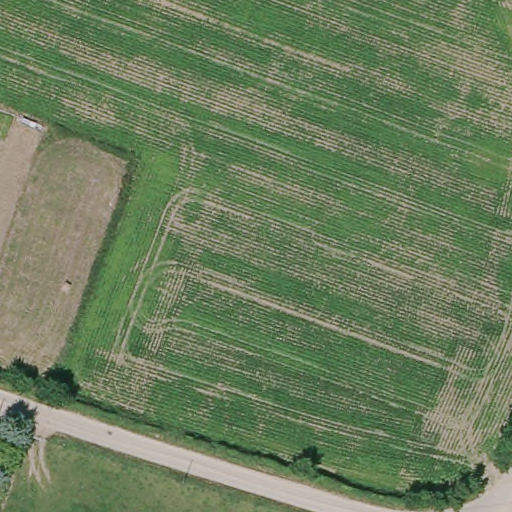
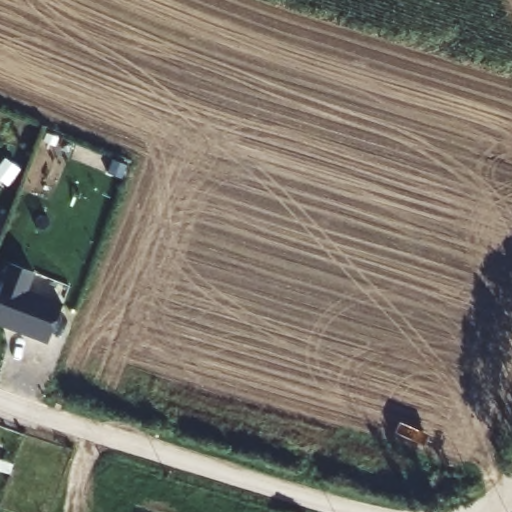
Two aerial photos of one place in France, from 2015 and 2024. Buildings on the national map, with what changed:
new [(10,263),(35,273),(29,290),(63,303),(47,343),(0,325),(0,289),(10,263)]

